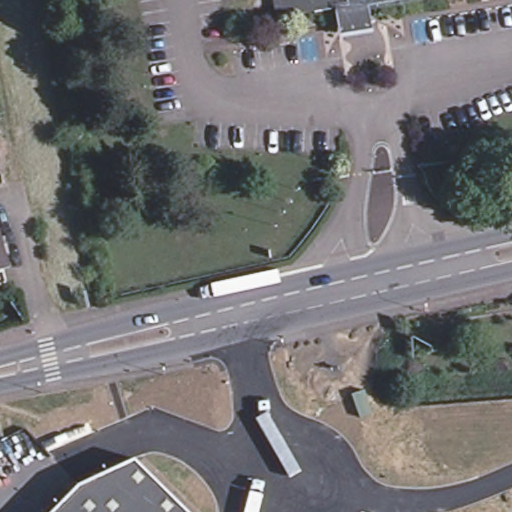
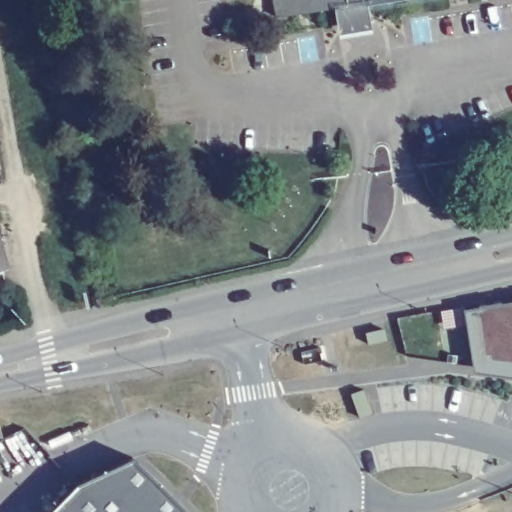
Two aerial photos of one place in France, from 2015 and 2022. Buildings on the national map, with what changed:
unchanged [(342,6),(275,17),(274,9),(263,11),(261,0),(341,0),(342,6)]
unchanged [(368,6),(367,0),(406,0),(368,6)]
unchanged [(6,269),(2,270),(6,286),(0,287),(0,245),(6,269)]
new [(512,302),(512,375),(474,370),(465,311),(512,302)]
unchanged [(155,451),(170,465),(172,495),(155,512),(34,512),(44,502),(155,451)]
unchanged [(70,476),(87,458),(155,451),(44,502),(70,476)]
unchanged [(155,512),(172,495),(170,465),(214,512),(155,512)]

